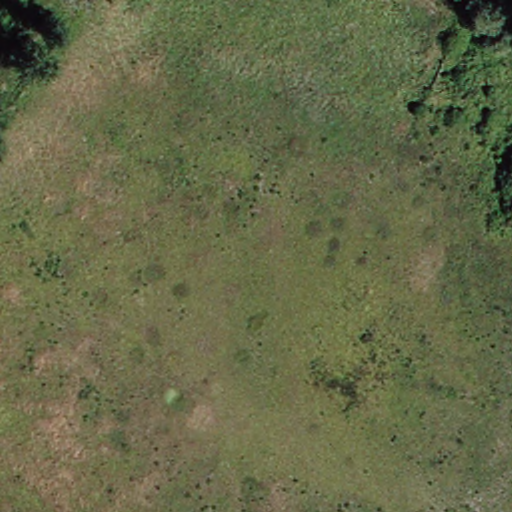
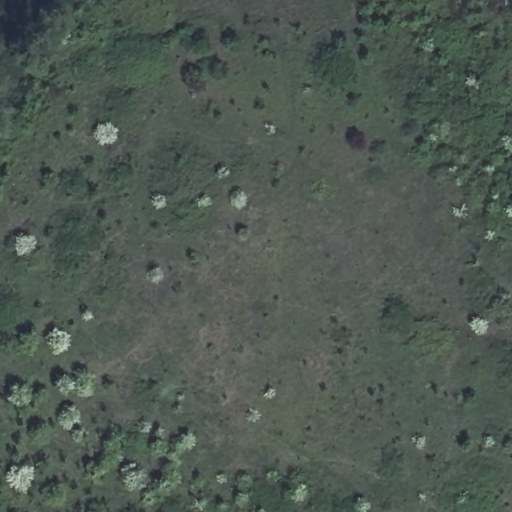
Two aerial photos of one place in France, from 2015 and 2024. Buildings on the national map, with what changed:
unchanged [(502,209),(512,174),(512,212),(502,209)]

